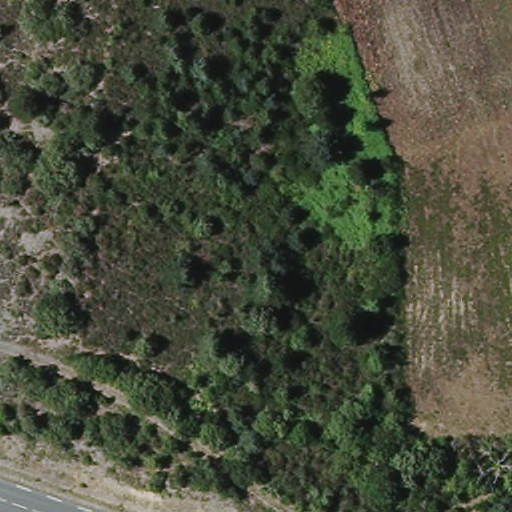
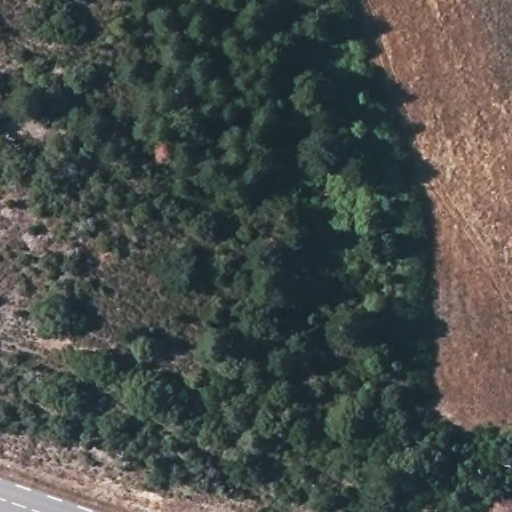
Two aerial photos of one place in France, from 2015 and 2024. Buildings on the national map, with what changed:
unchanged [(357,414),(373,414),(374,430),(357,430),(357,414)]
unchanged [(395,461),(394,476),(377,473),(378,457),(395,461)]

